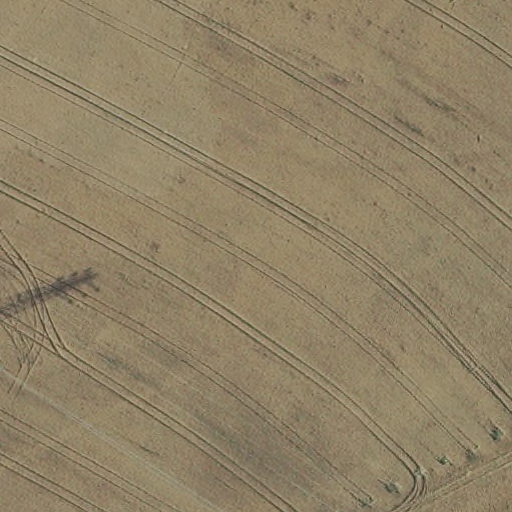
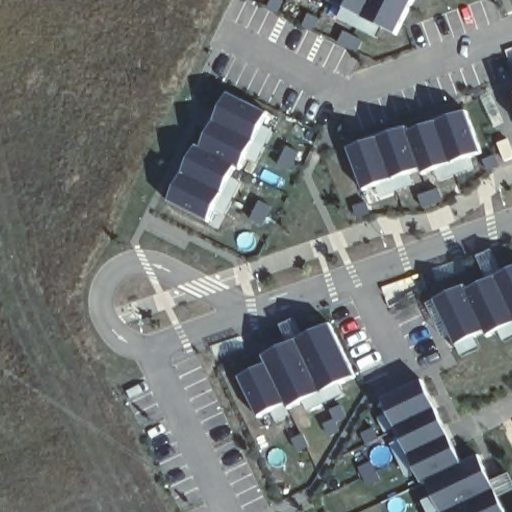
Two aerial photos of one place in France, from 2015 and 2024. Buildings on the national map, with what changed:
new [(331,1),(331,0),(412,0),(395,34),(331,1)]
new [(169,201),(197,146),(201,148),(229,95),(268,115),(242,168),(237,166),(208,221),(169,201)]
new [(422,174),(421,170),(363,191),(348,149),(406,128),(408,132),(465,112),(480,152),(422,174)]
new [(485,331),(455,346),(435,300),(465,287),(467,290),(512,269),(512,325),(488,337),(485,331)]
new [(264,355),(330,324),(355,376),(287,409),(285,404),(258,417),(240,377),(267,362),(264,355)]
new [(461,464),(479,456),(506,512),(441,512),(427,482),(422,484),(382,399),(423,381),(461,464)]

